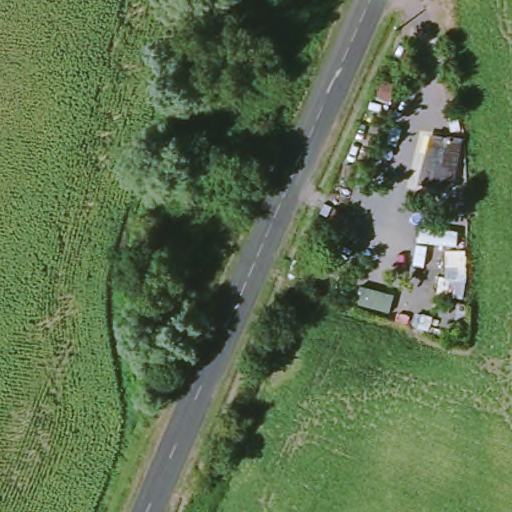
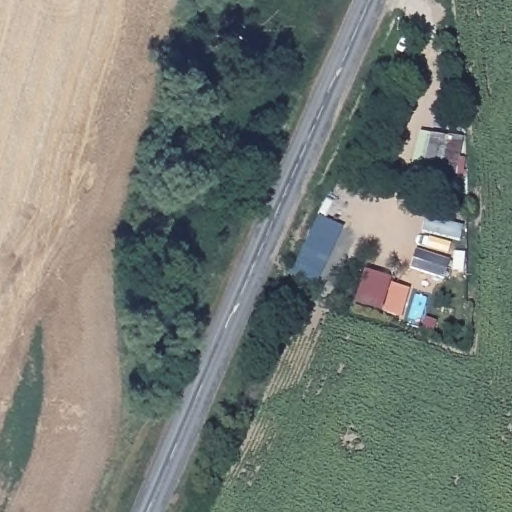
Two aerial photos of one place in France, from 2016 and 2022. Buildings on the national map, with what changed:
unchanged [(450,187),(416,181),(428,134),(460,137),(450,187)]
unchanged [(203,266),(193,290),(168,280),(176,256),(203,266)]
unchanged [(383,314),(351,301),(361,271),(393,283),(383,314)]

